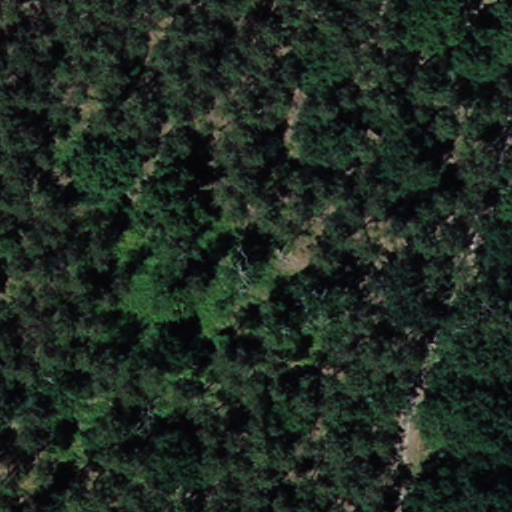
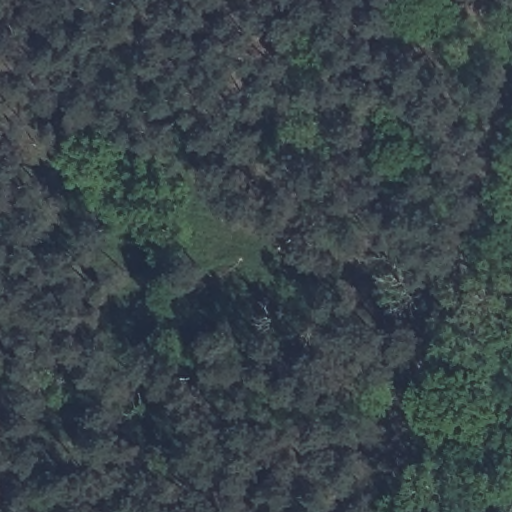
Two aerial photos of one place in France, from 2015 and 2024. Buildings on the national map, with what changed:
[]

